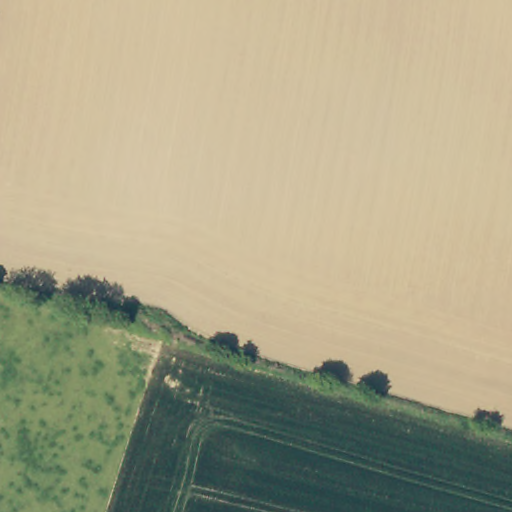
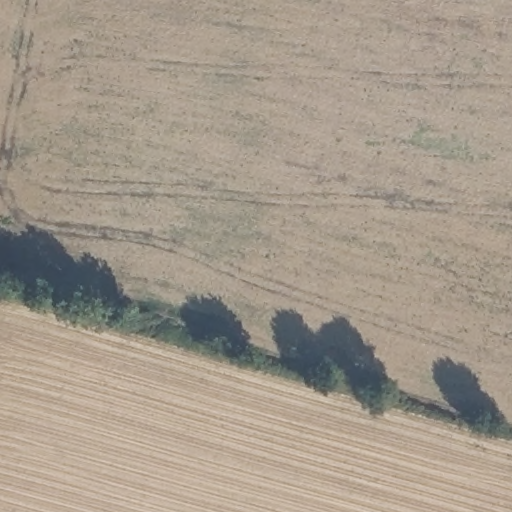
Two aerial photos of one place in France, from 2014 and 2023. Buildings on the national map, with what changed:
[]

